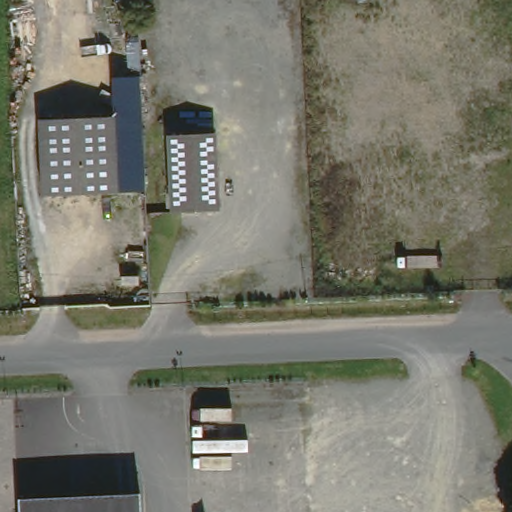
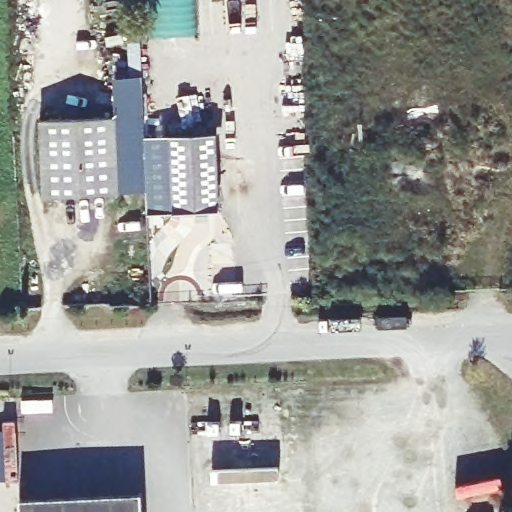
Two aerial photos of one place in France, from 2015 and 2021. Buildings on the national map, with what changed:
unchanged [(115,117),(114,78),(128,77),(126,42),(139,41),(140,77),(144,190),(118,193),(115,117)]
unchanged [(115,117),(118,193),(43,196),(40,120),(115,117)]
unchanged [(223,215),(179,217),(176,140),(217,138),(221,138),(223,215)]
new [(179,217),(149,215),(148,141),(176,140),(179,217)]
unchanged [(143,490),(143,512),(23,512),(23,493),(143,490)]

